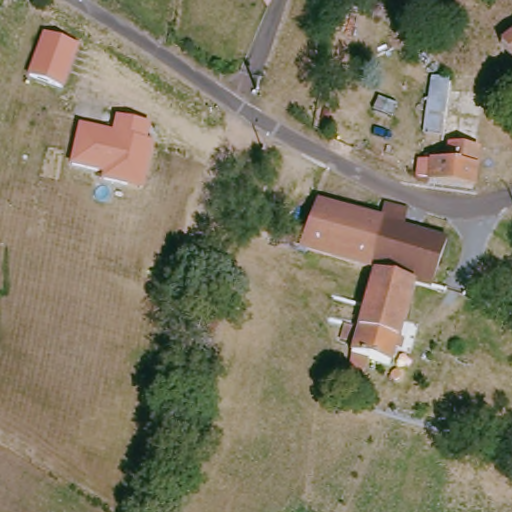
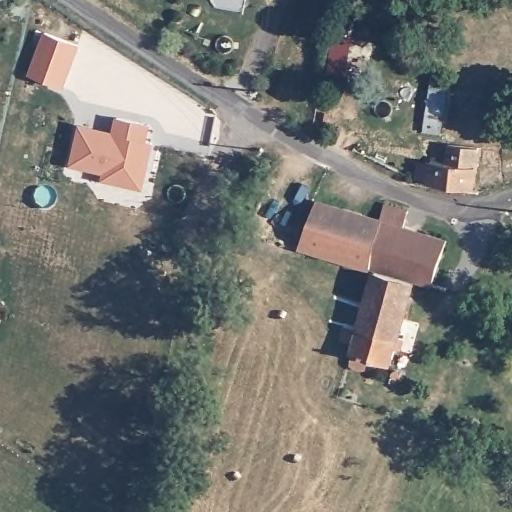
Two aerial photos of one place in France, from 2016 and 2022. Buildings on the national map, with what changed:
unchanged [(43,31),(80,43),(63,89),(28,73),(43,31)]
unchanged [(512,35),(512,59),(501,43),(512,35)]
unchanged [(423,131),(431,76),(448,77),(441,133),(423,131)]
unchanged [(79,122),(113,129),(115,116),(150,123),(146,141),(153,142),(144,188),(102,178),(103,171),(69,163),(79,122)]
unchanged [(479,145),(478,163),(476,185),(426,179),(429,156),(445,158),(447,141),(479,145)]
unchanged [(316,196),(381,214),(384,198),(408,205),(404,221),(447,234),(432,278),(432,280),(375,263),(299,242),(316,196)]
unchanged [(414,278),(391,359),(369,353),(366,360),(354,361),(351,355),(351,348),(354,338),(341,333),(344,320),(358,324),(374,267),(414,278)]

